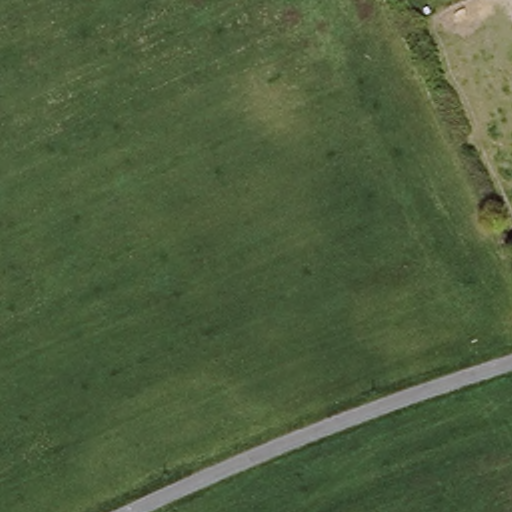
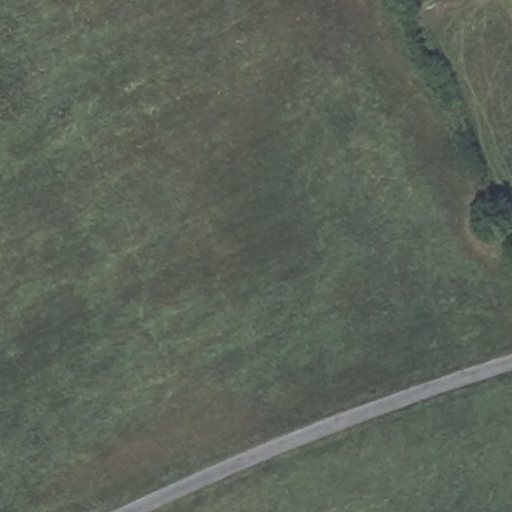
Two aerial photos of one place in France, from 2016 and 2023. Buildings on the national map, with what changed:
[]

